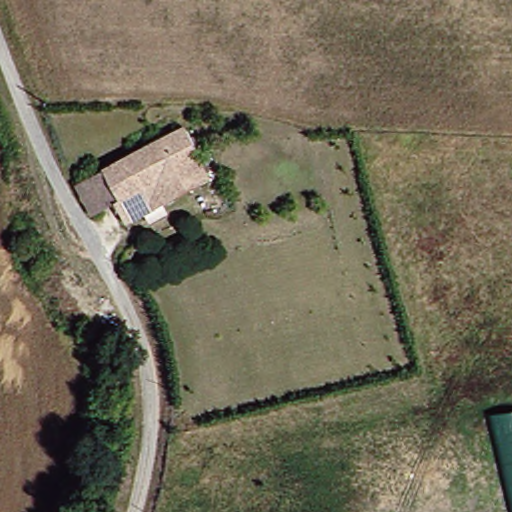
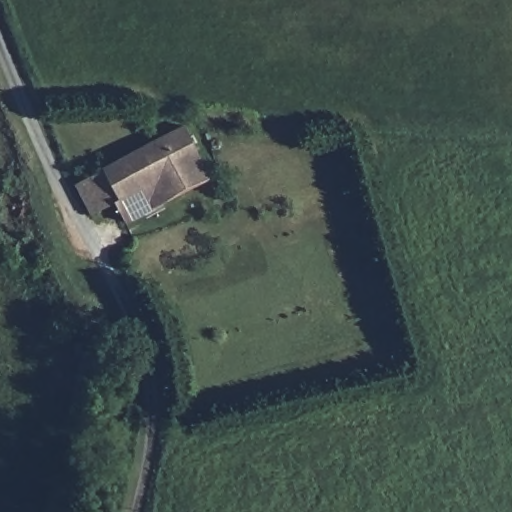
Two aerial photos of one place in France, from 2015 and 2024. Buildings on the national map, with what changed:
unchanged [(108,206),(86,219),(68,187),(178,129),(205,186),(148,214),(123,227),(108,206)]
demolished [(512,509),(489,419),(512,415),(512,509)]

